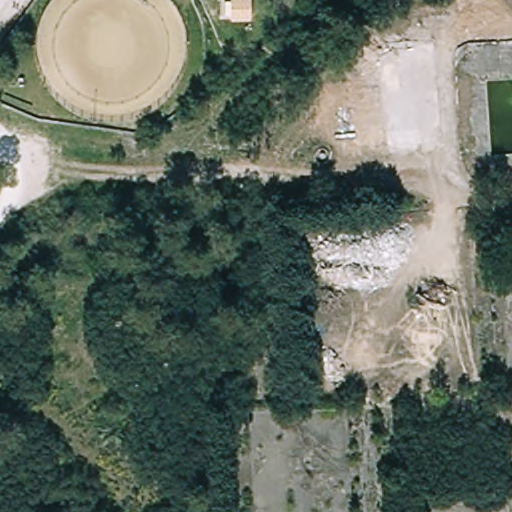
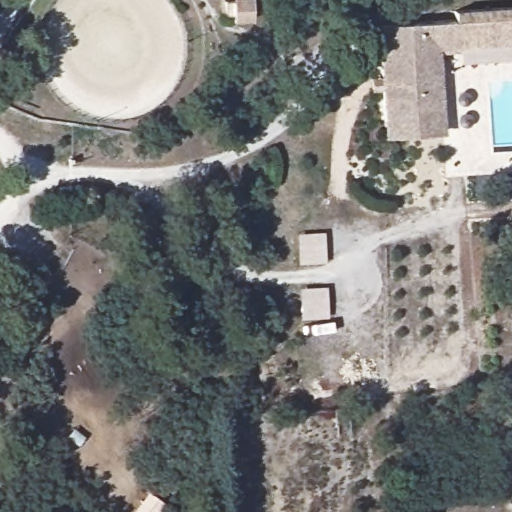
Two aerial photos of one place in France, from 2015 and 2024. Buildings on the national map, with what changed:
new [(408,24),(454,20),(452,10),(512,6),(512,60),(460,64),(459,48),(439,49),(445,133),(383,138),(380,91),(370,91),(369,77),(379,76),(375,25),(408,24)]
demolished [(509,48),(458,50),(457,21),(507,19),(509,48)]
demolished [(409,36),(408,25),(433,23),(435,51),(378,56),(379,74),(362,75),(359,40),(409,36)]
demolished [(424,90),(427,120),(384,123),(379,74),(378,56),(435,51),(437,65),(439,88),(424,90)]

